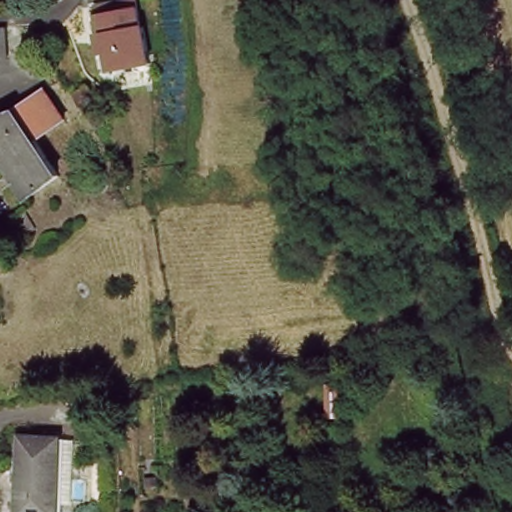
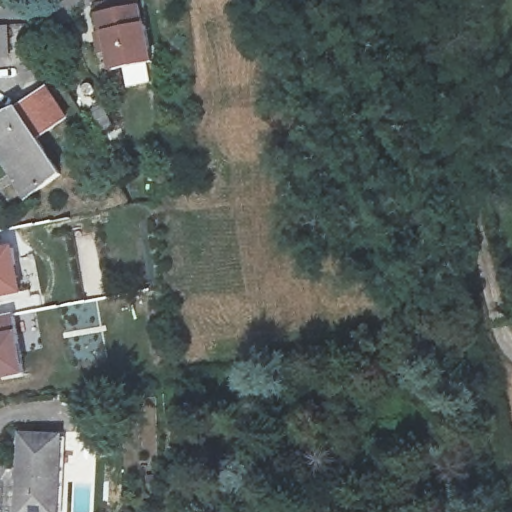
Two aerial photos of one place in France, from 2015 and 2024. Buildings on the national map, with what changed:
unchanged [(103,31),(97,12),(142,3),(150,25),(156,65),(111,72),(103,31)]
unchanged [(14,24),(16,57),(0,58),(0,25),(14,24)]
unchanged [(31,193),(0,142),(0,114),(14,109),(24,104),(54,87),(74,118),(41,137),(63,175),(31,193)]
new [(14,246),(24,293),(0,298),(0,248),(14,246)]
new [(19,333),(27,375),(0,379),(0,317),(15,314),(19,333)]
unchanged [(26,435),(65,437),(63,501),(59,501),(59,512),(22,512),(26,435)]

